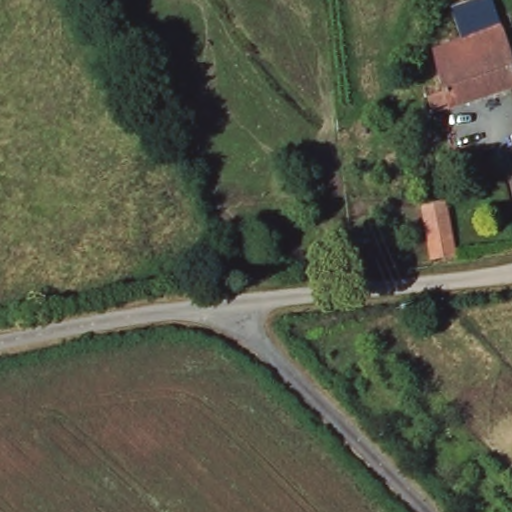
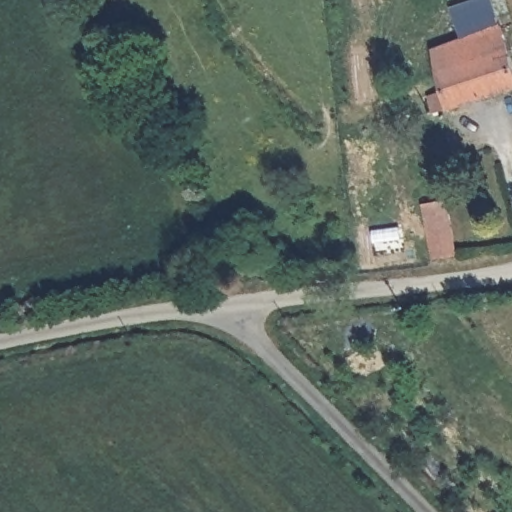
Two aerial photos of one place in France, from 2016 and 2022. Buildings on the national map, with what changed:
unchanged [(437,94),(423,54),(451,42),(441,16),(478,0),(480,0),(512,83),(431,117),(430,115),(427,106),(425,102),(424,99),(437,94)]
unchanged [(468,261),(464,262),(458,263),(456,263),(445,266),(444,264),(444,263),(443,259),(443,257),(439,241),(439,238),(438,236),(435,223),(433,213),(433,212),(439,211),(440,211),(446,209),(456,207),(468,261)]

